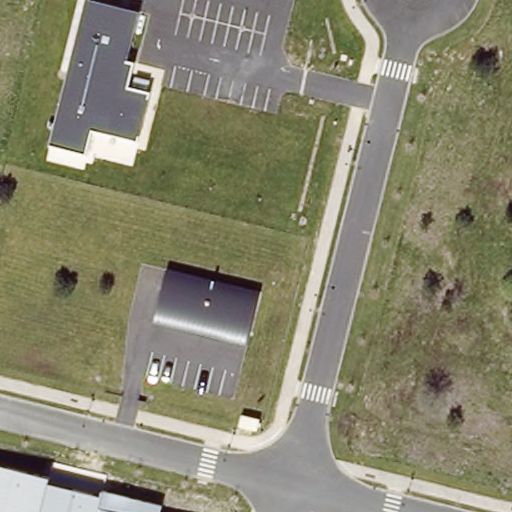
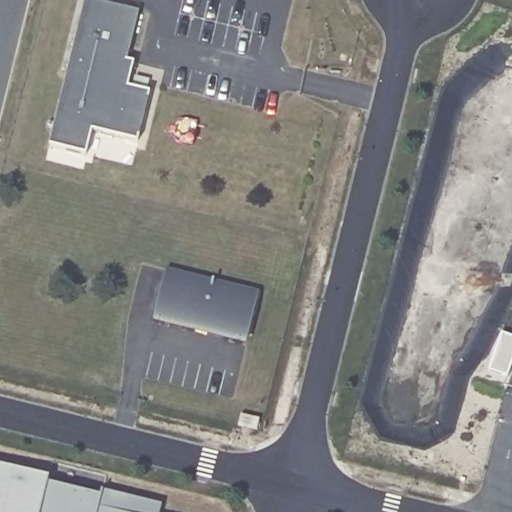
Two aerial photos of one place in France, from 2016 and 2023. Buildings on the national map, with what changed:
unchanged [(84,0),(95,0),(140,10),(129,63),(134,64),(129,87),(150,93),(139,138),(93,128),(86,151),(49,144),(84,0)]
unchanged [(167,266),(260,291),(249,341),(155,320),(167,266)]
new [(497,339),(512,344),(512,372),(511,375),(487,368),(497,339)]
unchanged [(49,482),(100,494),(102,488),(162,502),(160,512),(0,512),(0,464),(50,476),(49,482)]

